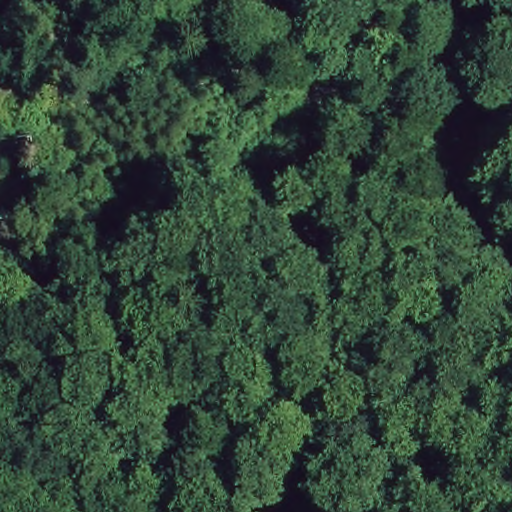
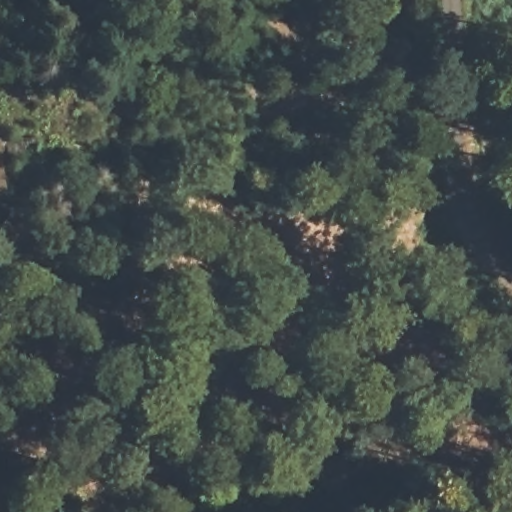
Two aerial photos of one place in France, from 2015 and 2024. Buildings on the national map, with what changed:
unchanged [(7,204),(0,204),(0,134),(4,134),(7,204)]
unchanged [(38,226),(20,258),(0,246),(0,234),(17,209),(38,226)]

